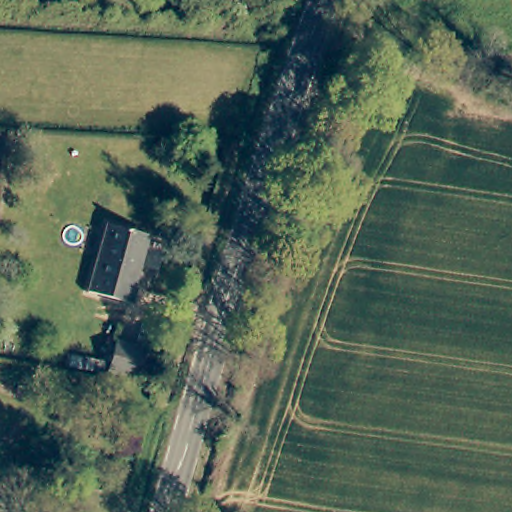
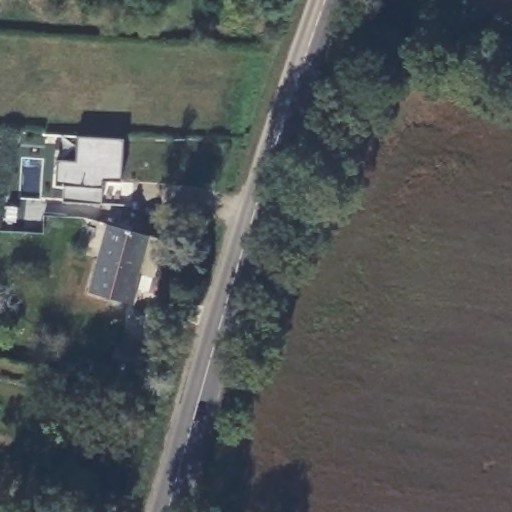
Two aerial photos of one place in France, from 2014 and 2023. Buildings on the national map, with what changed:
new [(120,181),(101,181),(100,202),(61,200),(62,185),(55,185),(55,161),(74,162),(76,137),(123,140),(120,181)]
unchanged [(136,288),(131,305),(87,292),(105,226),(146,237),(133,287),(136,288)]
unchanged [(119,347),(149,356),(140,386),(109,381),(119,347)]

